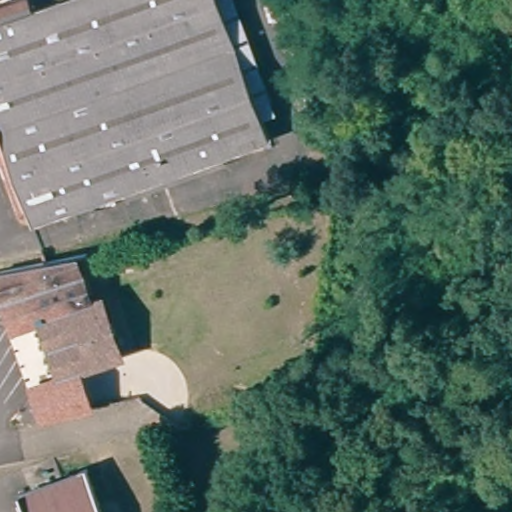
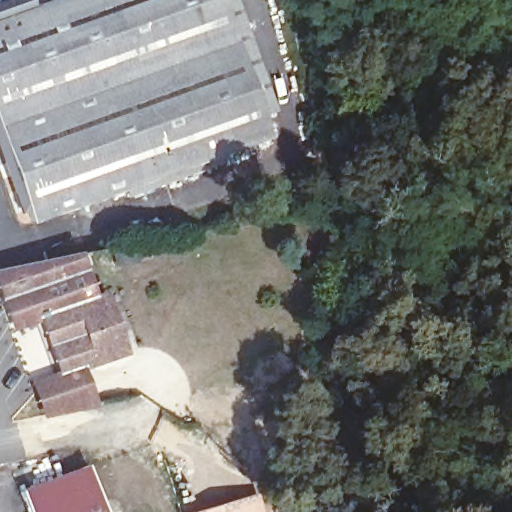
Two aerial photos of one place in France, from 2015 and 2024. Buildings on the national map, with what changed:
unchanged [(0,20),(53,0),(221,0),(270,130),(35,217),(0,124),(0,20)]
unchanged [(107,291),(129,353),(85,367),(96,402),(44,417),(31,377),(54,370),(41,323),(15,329),(0,288),(0,268),(80,249),(96,294),(107,291)]
unchanged [(106,512),(27,512),(18,488),(89,462),(106,512)]
new [(262,512),(195,512),(257,495),(262,512)]

